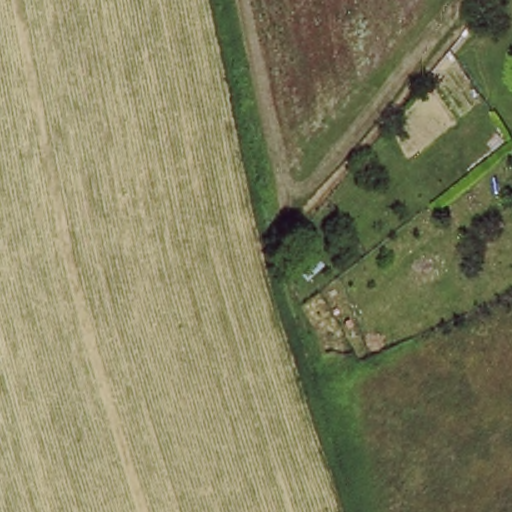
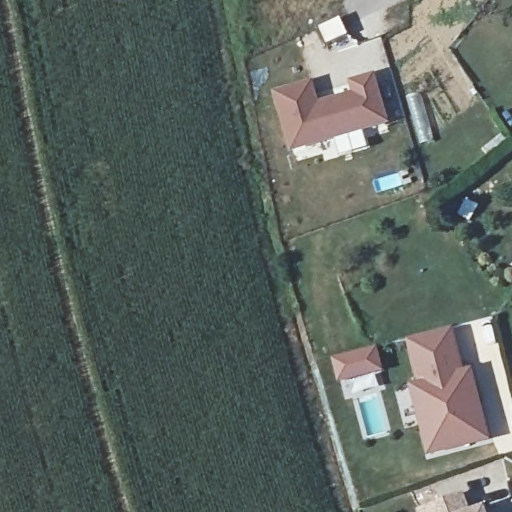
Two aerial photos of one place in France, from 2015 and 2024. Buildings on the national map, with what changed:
new [(355,101),(351,90),(372,84),(385,129),(292,156),(276,100),(310,90),(316,112),(355,101)]
new [(455,330),(469,377),(420,390),(408,341),(455,330)]
new [(380,350),(386,372),(340,385),(333,361),(380,350)]
new [(469,377),(484,445),(424,459),(405,395),(469,377)]
new [(464,512),(429,512),(460,501),(464,512)]

